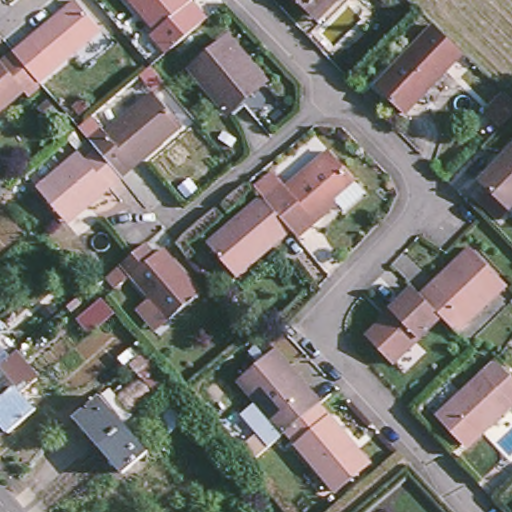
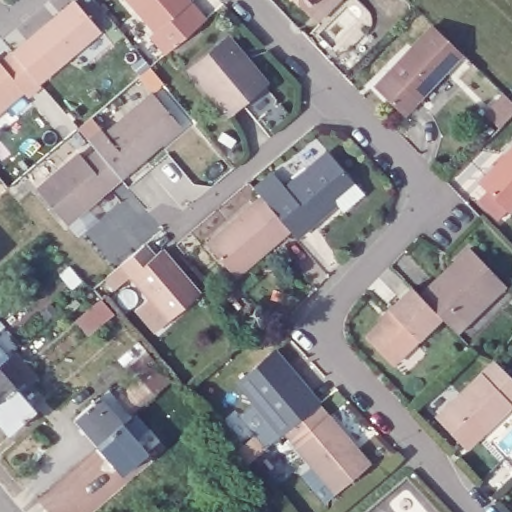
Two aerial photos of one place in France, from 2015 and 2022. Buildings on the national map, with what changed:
unchanged [(21,87),(0,106),(0,63),(1,64),(13,54),(32,37),(77,0),(98,26),(55,64),(37,81),(40,85),(28,95),(21,87)]
unchanged [(129,0),(181,0),(151,26),(129,0)]
unchanged [(145,32),(151,26),(181,0),(186,0),(202,18),(162,52),(145,32)]
unchanged [(307,15),(295,3),(292,0),(323,0),(307,15)]
unchanged [(459,51),(402,107),(375,80),(432,24),(459,51)]
unchanged [(226,41),(257,81),(224,109),(192,69),(226,41)]
unchanged [(102,130),(150,90),(172,118),(177,124),(156,141),(115,177),(91,148),(81,136),(96,124),(102,130)]
unchanged [(497,103),(506,95),(512,102),(512,118),(512,119),(505,125),(490,110),(497,103)]
unchanged [(482,193),(490,184),(482,176),(479,173),(495,157),(512,141),(512,199),(509,202),(501,210),(482,193)]
unchanged [(57,216),(32,188),(75,152),(80,157),(91,148),(115,177),(82,205),(62,222),(57,216)]
unchanged [(342,215),(334,206),(314,225),(284,190),(325,155),(350,184),(361,197),(342,215)]
unchanged [(314,225),(295,241),(287,232),(259,201),(263,197),(255,189),(270,175),(278,185),(284,190),(314,225)]
unchanged [(0,212),(0,200),(2,199),(8,205),(0,212)]
unchanged [(235,278),(206,245),(259,201),(287,232),(235,278)]
unchanged [(141,266),(125,280),(114,266),(151,235),(162,249),(170,243),(206,285),(177,309),(163,320),(145,298),(159,287),(141,266)]
unchanged [(393,315),(389,310),(412,288),(422,298),(434,287),(459,263),(474,251),(507,286),(467,324),(457,335),(449,326),(442,320),(394,364),(369,337),(393,315)]
unchanged [(79,282),(70,290),(60,278),(68,270),(79,282)]
unchanged [(75,301),(79,305),(71,312),(67,308),(75,301)]
unchanged [(80,323),(92,313),(104,303),(114,315),(101,325),(89,335),(80,323)]
unchanged [(92,446),(75,425),(68,418),(92,396),(94,398),(102,390),(107,396),(133,375),(123,365),(121,367),(112,358),(132,341),(165,380),(124,415),(125,417),(127,415),(140,430),(130,438),(142,453),(117,475),(92,446)]
unchanged [(235,381),(272,347),(319,400),(316,403),(285,430),(281,433),(235,381)]
unchanged [(0,352),(5,357),(10,353),(34,380),(17,393),(32,410),(4,433),(0,429),(0,352)]
unchanged [(512,383),(512,406),(487,428),(484,424),(463,443),(438,416),(492,365),(512,383)]
unchanged [(182,418),(166,432),(152,415),(167,402),(182,418)]
unchanged [(359,466),(337,488),(285,430),(316,403),(350,442),(366,459),(359,466)]
unchanged [(256,438),(266,448),(252,461),(242,450),(256,438)]

